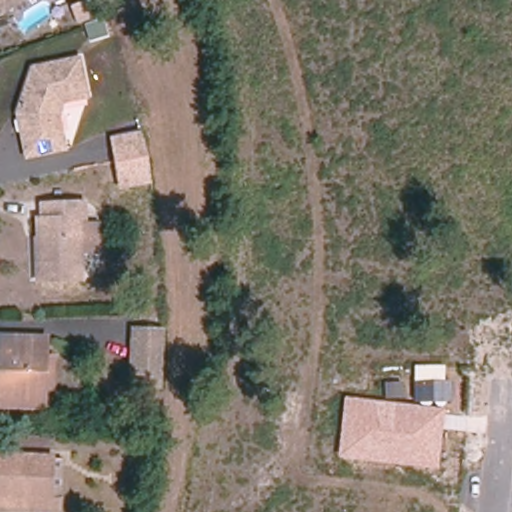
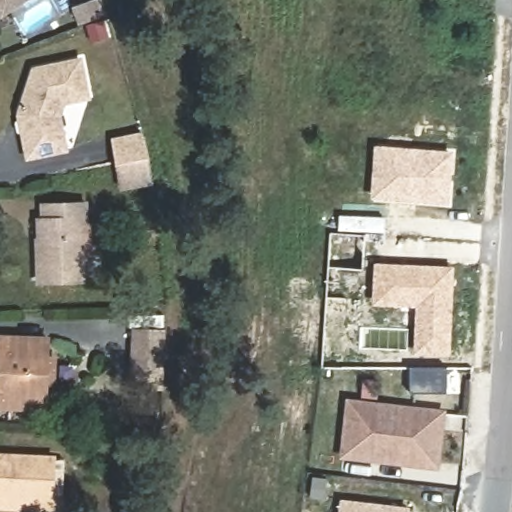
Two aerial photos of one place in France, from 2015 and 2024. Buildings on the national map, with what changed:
unchanged [(0,12),(0,0),(18,0),(0,12)]
new [(99,0),(104,0),(109,15),(81,25),(75,9),(99,0)]
unchanged [(87,99),(63,103),(55,117),(61,150),(24,157),(16,114),(31,70),(79,59),(87,99)]
unchanged [(114,161),(111,141),(140,135),(142,144),(144,155),(148,179),(119,185),(114,161)]
new [(456,151),(452,209),(370,202),(374,145),(456,151)]
unchanged [(44,217),(49,217),(48,203),(90,201),(90,217),(85,218),(87,278),(46,279),(44,217)]
new [(339,230),(340,214),(386,216),(385,232),(339,230)]
new [(413,354),(415,307),(372,305),(373,262),(454,266),(450,356),(413,354)]
unchanged [(135,374),(135,329),(166,330),(165,350),(165,374),(135,374)]
unchanged [(48,336),(45,407),(0,406),(0,386),(6,386),(6,356),(0,356),(0,336),(0,335),(48,336)]
unchanged [(437,469),(338,457),(345,398),(447,409),(437,469)]
unchanged [(51,498),(0,495),(0,454),(53,456),(51,498)]
new [(410,506),(409,512),(338,512),(340,499),(410,506)]

